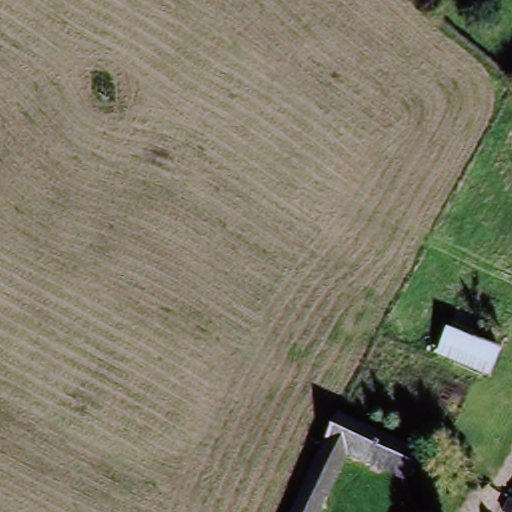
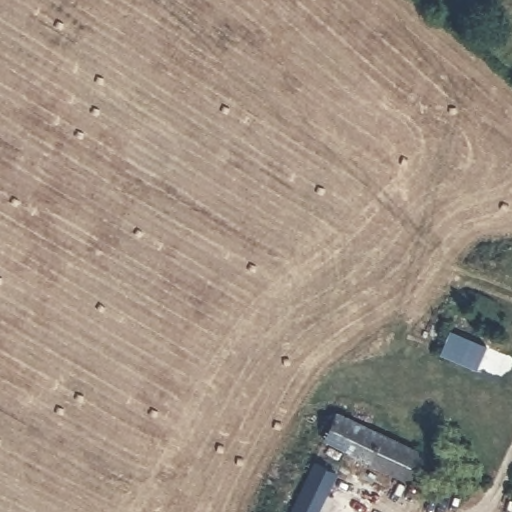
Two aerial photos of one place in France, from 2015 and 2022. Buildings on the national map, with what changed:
unchanged [(485,376),(435,352),(447,330),(495,352),(485,376)]
unchanged [(405,483),(355,457),(327,512),(291,512),(292,510),(333,430),(338,421),(340,418),(346,421),(352,425),(418,458),(405,483)]

